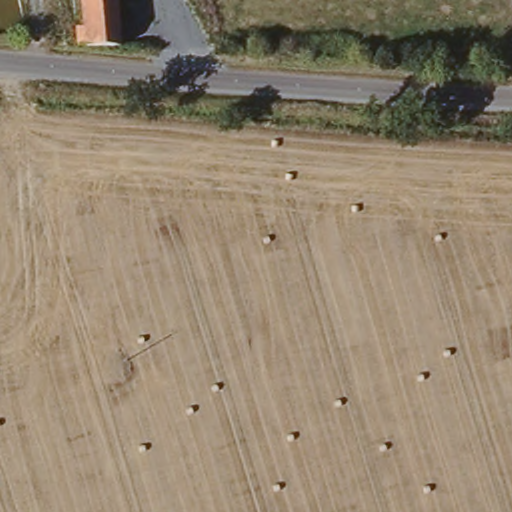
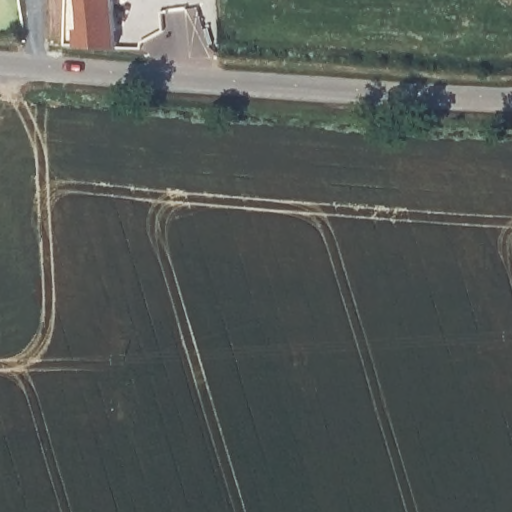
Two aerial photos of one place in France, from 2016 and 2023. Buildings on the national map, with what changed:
unchanged [(88,30),(86,0),(121,0),(124,49),(83,47),(81,31),(88,30)]

